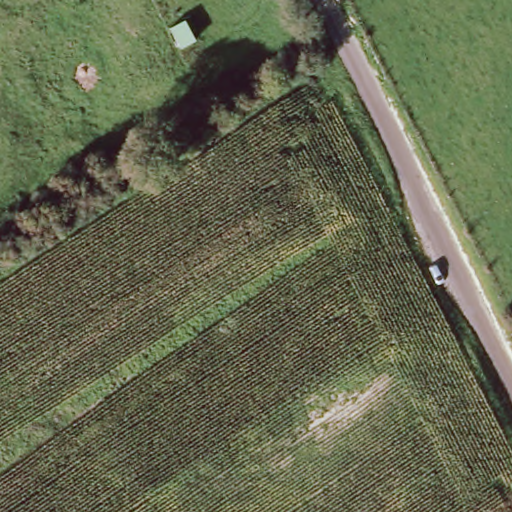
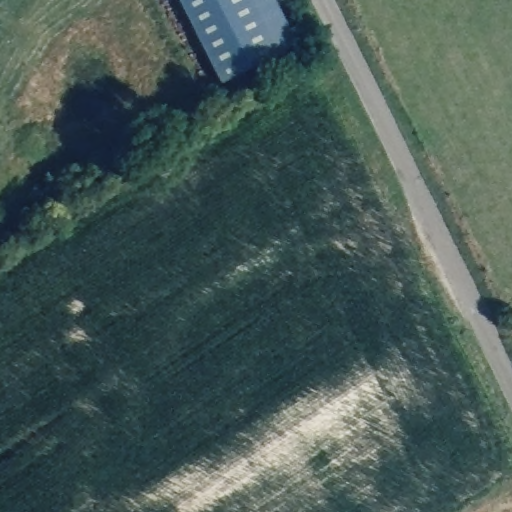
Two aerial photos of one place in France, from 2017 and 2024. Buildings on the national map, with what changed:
new [(179,0),(275,0),(297,45),(222,83),(179,0)]

